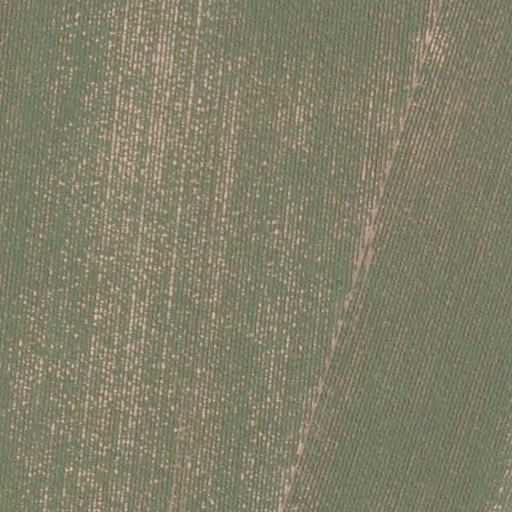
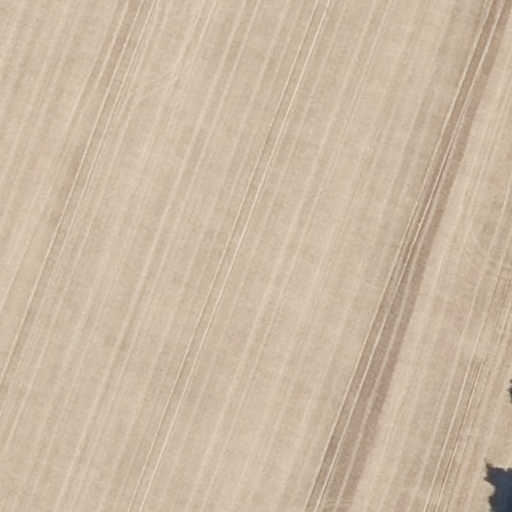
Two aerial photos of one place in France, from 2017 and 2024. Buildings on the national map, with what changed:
[]

